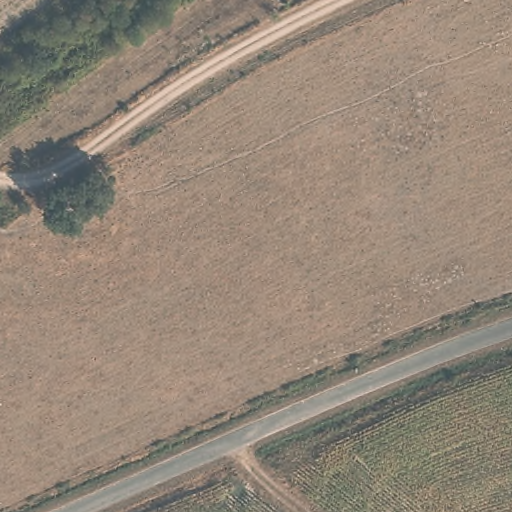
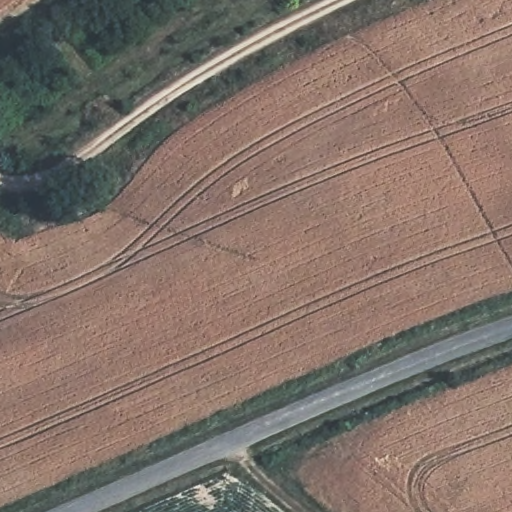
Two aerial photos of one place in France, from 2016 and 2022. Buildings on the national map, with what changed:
[]

